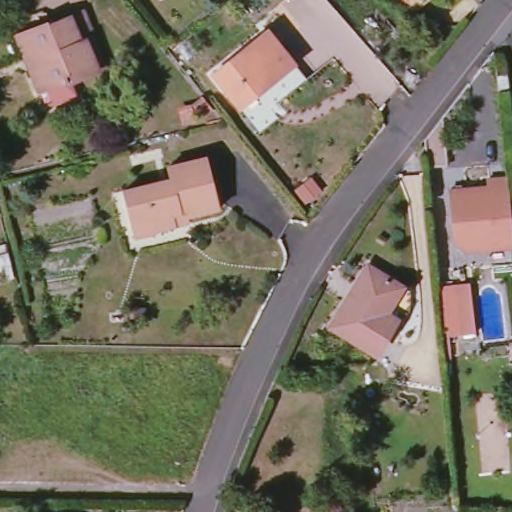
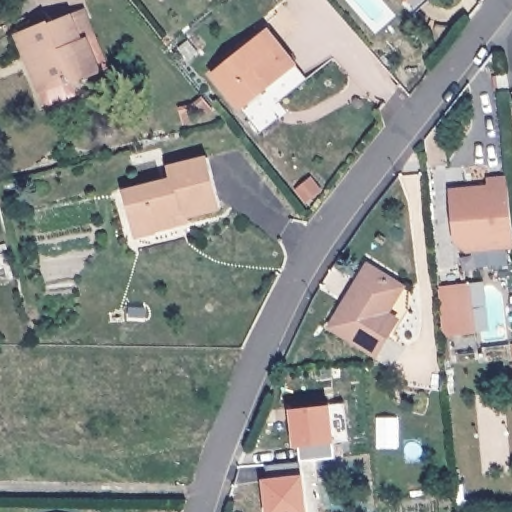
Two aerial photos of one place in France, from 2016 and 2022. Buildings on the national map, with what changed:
unchanged [(72,80),(78,94),(51,105),(46,104),(32,69),(35,67),(30,54),(26,55),(17,35),(50,21),(51,24),(70,15),(82,10),(93,35),(80,40),(94,71),(72,80)]
unchanged [(214,75),(269,30),(295,64),(266,87),(240,108),(237,105),(214,75)]
unchanged [(507,74),(509,90),(500,90),(497,75),(507,74)]
unchanged [(135,236),(132,224),(124,190),(170,179),(167,167),(208,157),(220,208),(187,216),(189,221),(176,225),(155,230),(156,231),(135,236)]
unchanged [(450,191),(488,187),(487,180),(508,177),(512,217),(512,241),(494,242),(494,249),(467,251),(455,240),(450,191)]
unchanged [(390,332),(377,354),(330,326),(368,265),(404,286),(387,312),(398,319),(390,332)]
unchanged [(475,332),(450,336),(450,358),(444,358),(437,287),(469,284),(475,332)]
new [(334,403),(339,456),(304,460),(302,445),(300,445),(295,407),(334,403)]
new [(269,463),(304,460),(309,512),(271,512),(267,478),(271,478),(269,463)]

